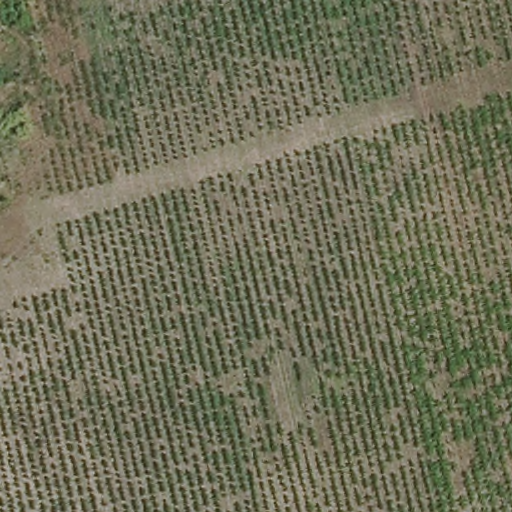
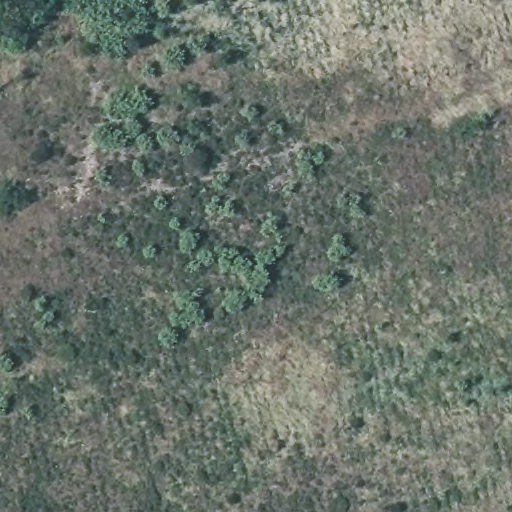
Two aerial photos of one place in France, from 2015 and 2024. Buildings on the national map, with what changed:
[]

